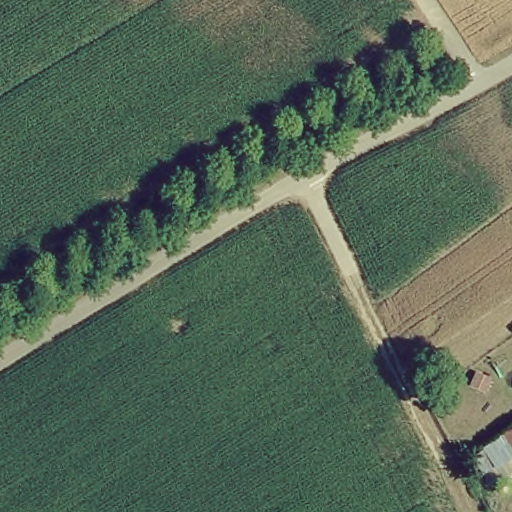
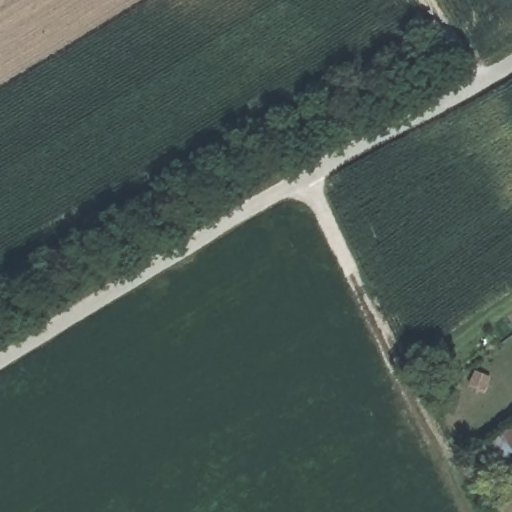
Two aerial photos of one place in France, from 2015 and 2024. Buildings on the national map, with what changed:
unchanged [(473,459),(512,430),(512,454),(486,473),(473,459)]

